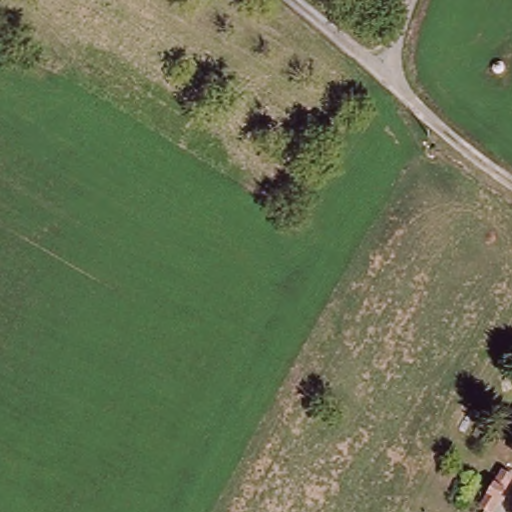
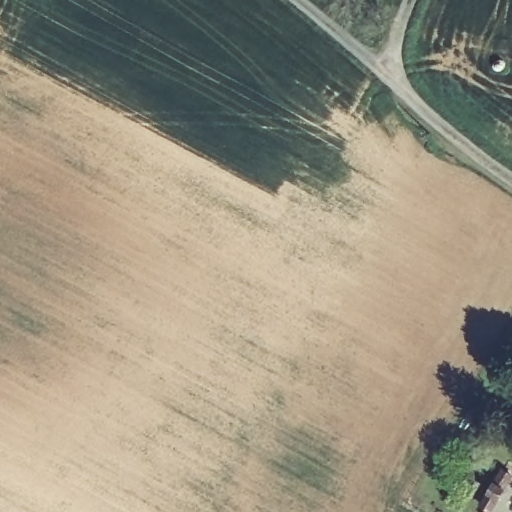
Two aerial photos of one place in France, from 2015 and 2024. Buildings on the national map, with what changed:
unchanged [(488,511),(474,504),(493,469),(506,476),(488,511)]

